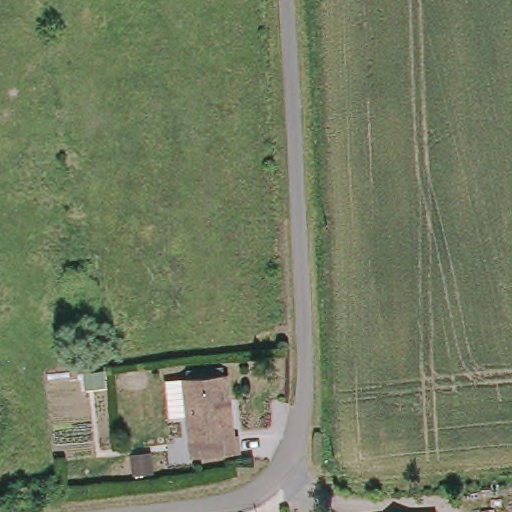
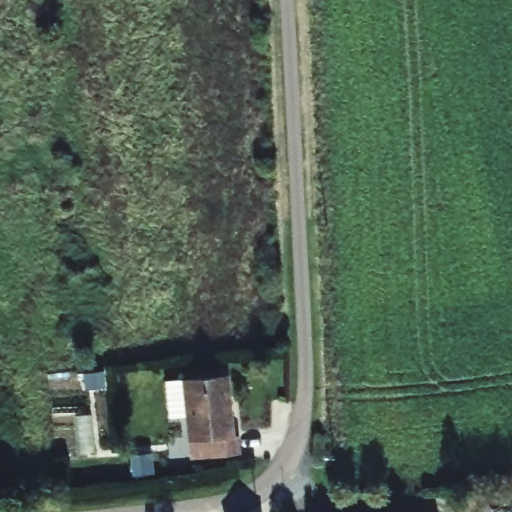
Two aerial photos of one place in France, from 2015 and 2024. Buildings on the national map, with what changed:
unchanged [(247,455),(196,458),(194,417),(174,418),(173,379),(235,375),(236,434),(248,434),(247,455)]

